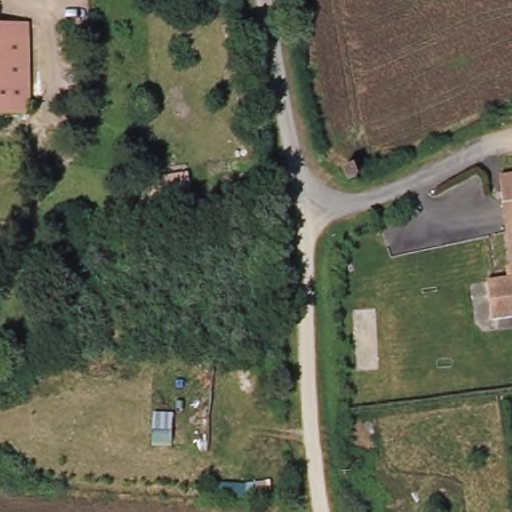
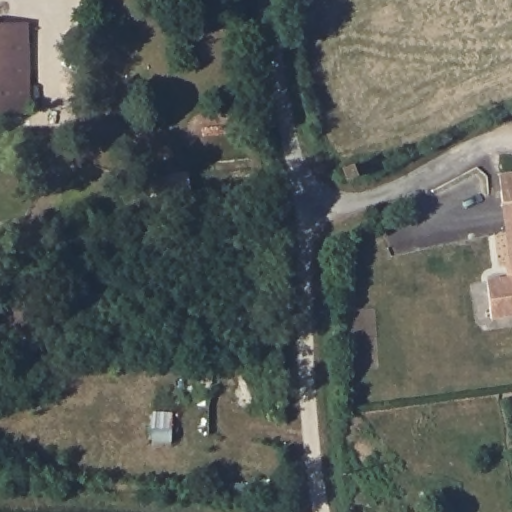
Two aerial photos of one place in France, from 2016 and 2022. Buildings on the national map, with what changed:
unchanged [(28,24),(31,114),(0,114),(0,24),(13,24),(28,24)]
unchanged [(499,182),(512,180),(512,253),(499,182)]
unchanged [(486,291),(495,288),(494,277),(512,272),(512,319),(493,323),(486,291)]

